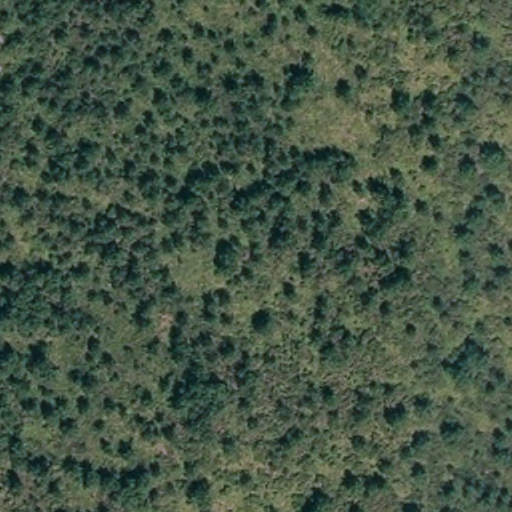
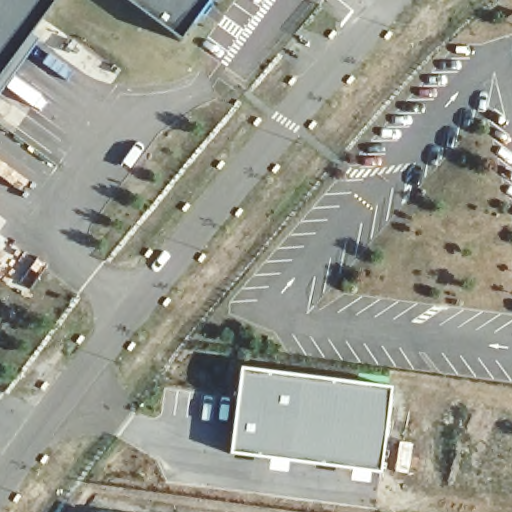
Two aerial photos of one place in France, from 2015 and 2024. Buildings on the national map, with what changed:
new [(55,0),(0,75),(0,0),(55,0)]
new [(210,0),(180,39),(128,0),(210,0)]
new [(391,386),(381,471),(231,454),(241,367),(391,386)]

